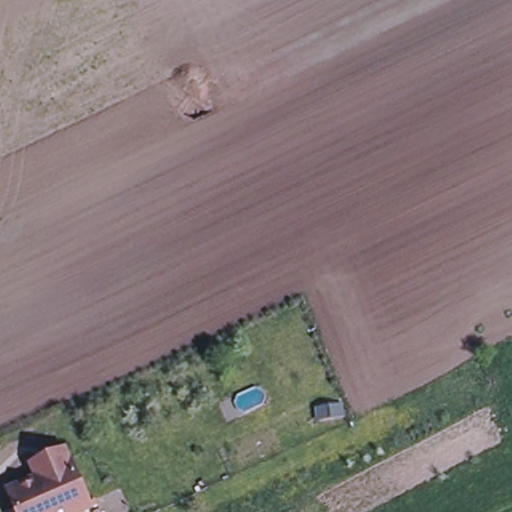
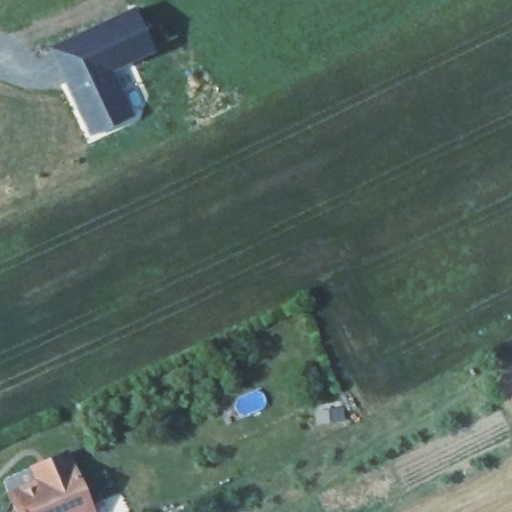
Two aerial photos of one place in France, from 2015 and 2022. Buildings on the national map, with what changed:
new [(154,52),(112,72),(133,117),(90,138),(47,48),(132,8),(154,52)]
unchanged [(37,479),(31,466),(45,460),(67,451),(69,456),(93,510),(89,512),(18,512),(9,491),(37,479)]

